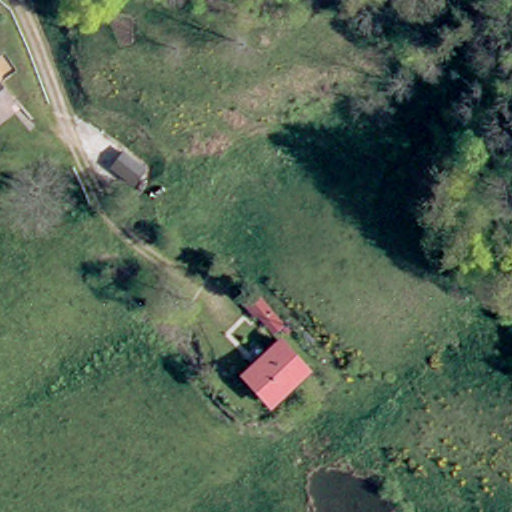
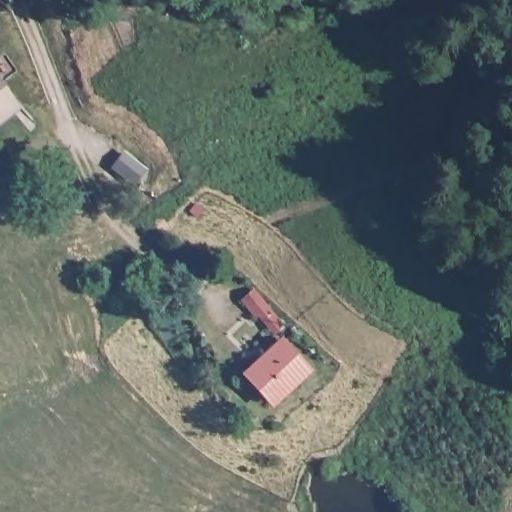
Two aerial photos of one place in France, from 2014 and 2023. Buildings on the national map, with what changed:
unchanged [(7,100),(0,105),(0,90),(7,100)]
unchanged [(148,169),(133,187),(110,169),(124,151),(148,169)]
unchanged [(283,318),(270,330),(254,312),(266,300),(283,318)]
unchanged [(269,402),(244,375),(279,345),(304,371),(269,402)]

